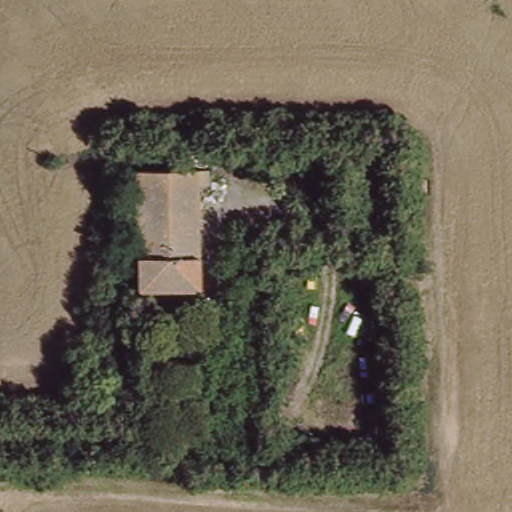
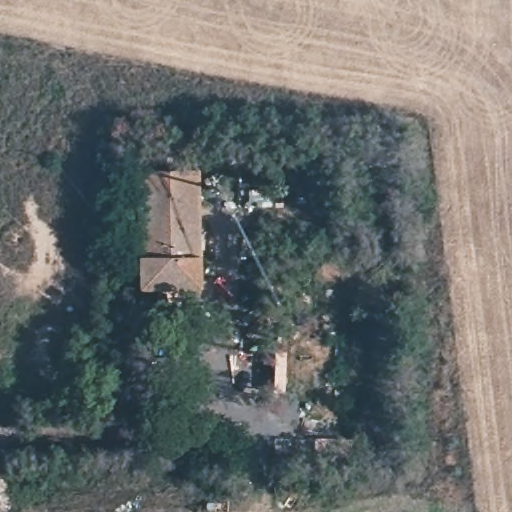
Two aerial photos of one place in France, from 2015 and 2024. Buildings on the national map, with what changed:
unchanged [(195,286),(135,286),(136,169),(196,167),(195,172),(195,286)]

